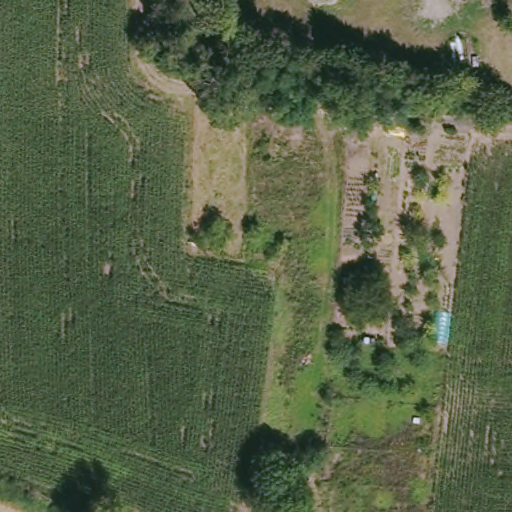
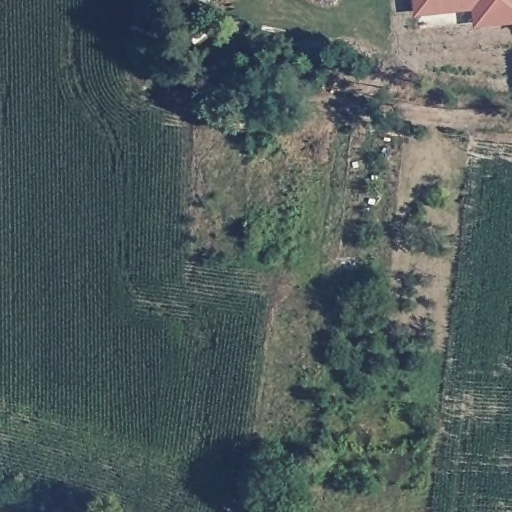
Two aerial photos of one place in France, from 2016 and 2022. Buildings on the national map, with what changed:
new [(476,26),(474,9),(416,15),(414,0),(512,0),(512,22),(476,26)]

